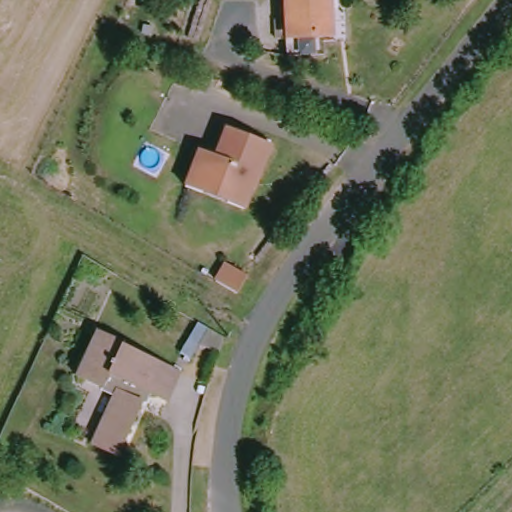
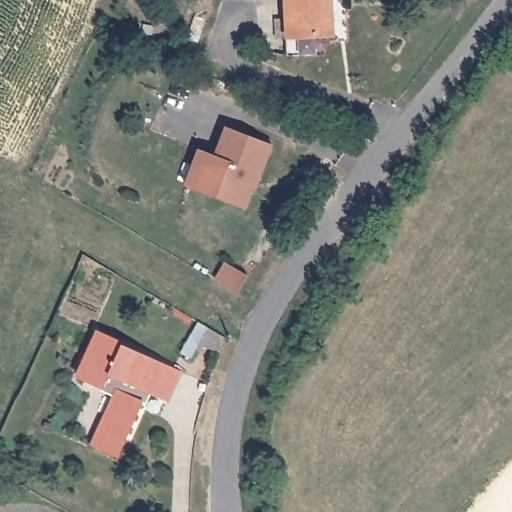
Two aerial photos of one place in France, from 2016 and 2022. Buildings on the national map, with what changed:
unchanged [(290,36),(288,0),(317,0),(317,1),(327,0),(329,20),(322,20),(322,30),(323,51),(292,54),(290,36)]
unchanged [(187,189),(197,150),(215,156),(223,125),(269,141),(258,180),(255,179),(247,210),(230,204),(204,194),(187,189)]
unchanged [(207,341),(215,325),(233,334),(227,349),(207,341)]
unchanged [(152,394),(128,459),(100,449),(121,391),(110,387),(107,392),(79,380),(95,332),(120,342),(119,345),(181,371),(171,399),(152,394)]

